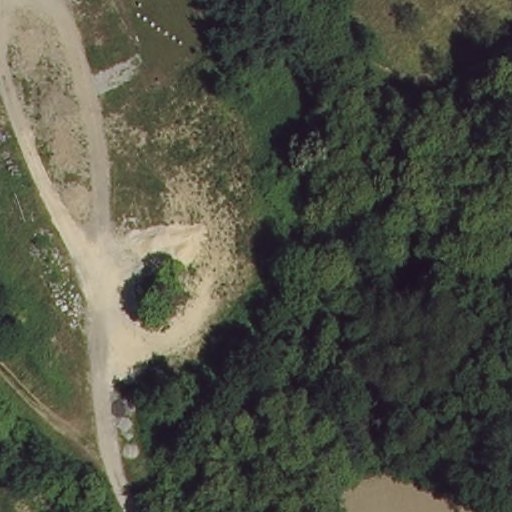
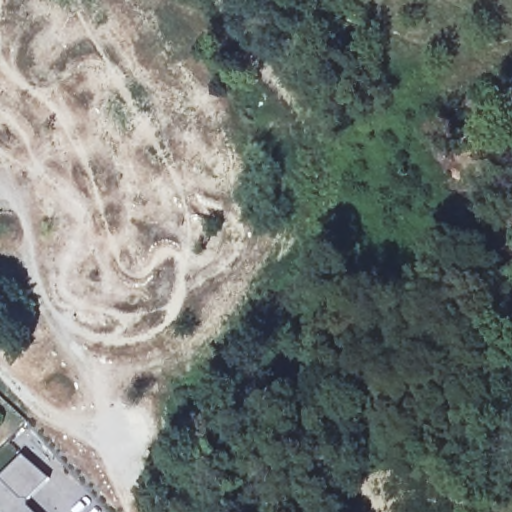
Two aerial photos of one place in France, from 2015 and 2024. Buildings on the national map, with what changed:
new [(48,481),(26,503),(26,508),(30,512),(0,512),(0,479),(21,457),(48,481)]

